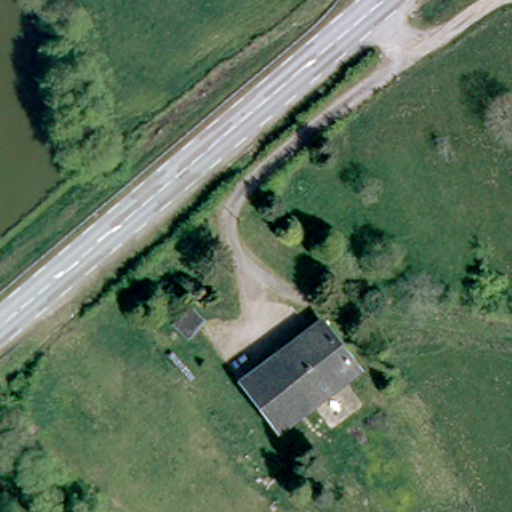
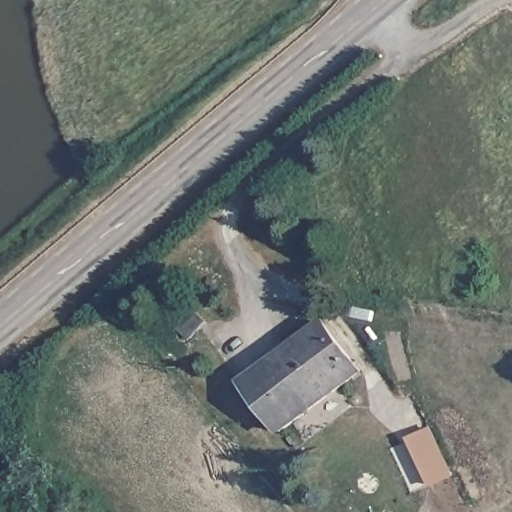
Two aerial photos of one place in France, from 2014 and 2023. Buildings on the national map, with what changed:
unchanged [(194,298),(182,284),(195,270),(208,285),(194,298)]
unchanged [(324,322),(360,367),(282,429),(247,384),(324,322)]
new [(430,488),(405,438),(430,426),(455,478),(430,488)]

